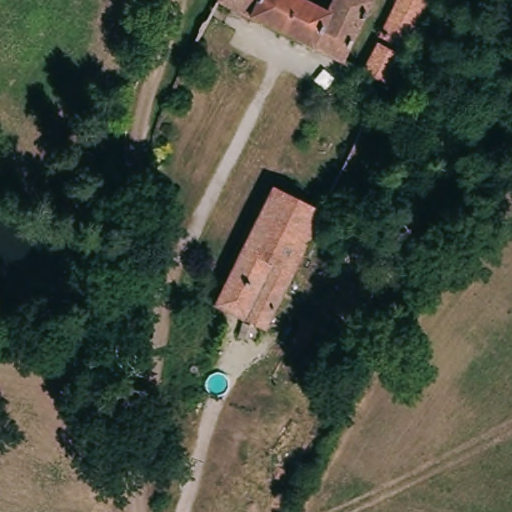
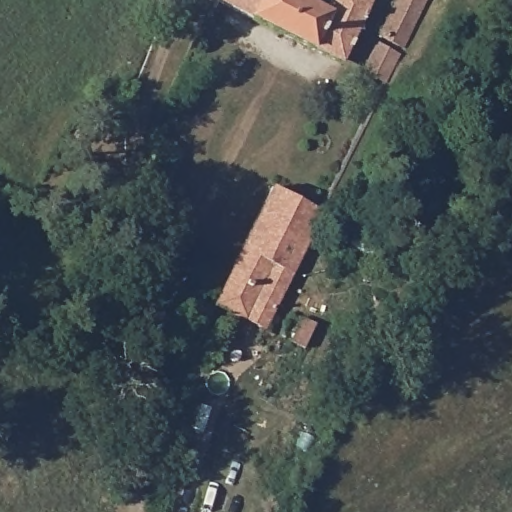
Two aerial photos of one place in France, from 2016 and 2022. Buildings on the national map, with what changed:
unchanged [(331,12),(337,0),(375,0),(378,1),(365,29),(346,63),(213,0),(306,0),(331,12)]
unchanged [(396,0),(426,0),(406,44),(403,50),(381,40),(378,39),(396,0)]
unchanged [(375,45),(398,57),(383,90),(360,78),(375,45)]
unchanged [(360,98),(370,102),(363,116),(355,111),(360,98)]
unchanged [(273,189),(327,214),(320,226),(295,277),(270,266),(243,252),(273,189)]
unchanged [(287,292),(267,331),(214,305),(229,276),(229,275),(240,251),(243,252),(270,266),(295,277),(287,292)]
unchanged [(297,317),(310,323),(299,345),(287,339),(297,317)]

